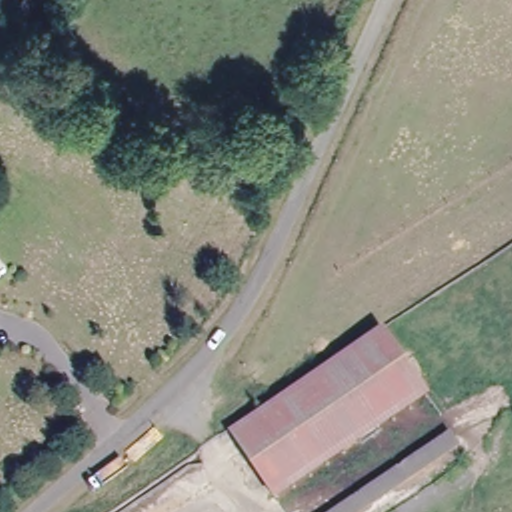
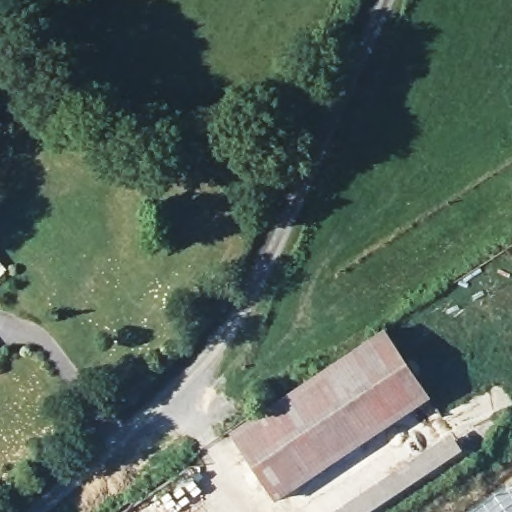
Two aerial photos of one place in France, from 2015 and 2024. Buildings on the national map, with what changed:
unchanged [(279,497),(232,428),(340,358),(382,331),(425,395),(279,497)]
unchanged [(376,512),(323,512),(446,428),(464,455),(376,512)]
new [(469,512),(512,482),(512,512),(469,512)]

